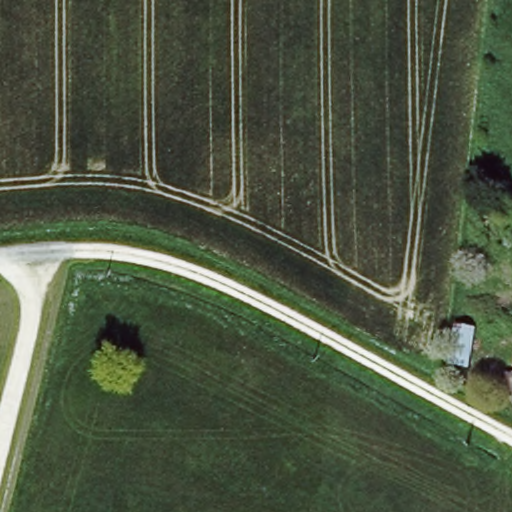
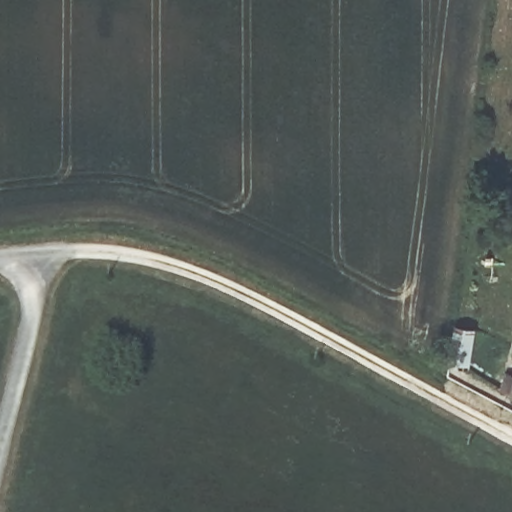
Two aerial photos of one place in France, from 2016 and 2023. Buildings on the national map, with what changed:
unchanged [(468,307),(472,328),(468,375),(445,374),(454,307),(468,307)]
unchanged [(512,370),(512,403),(505,401),(512,370)]

